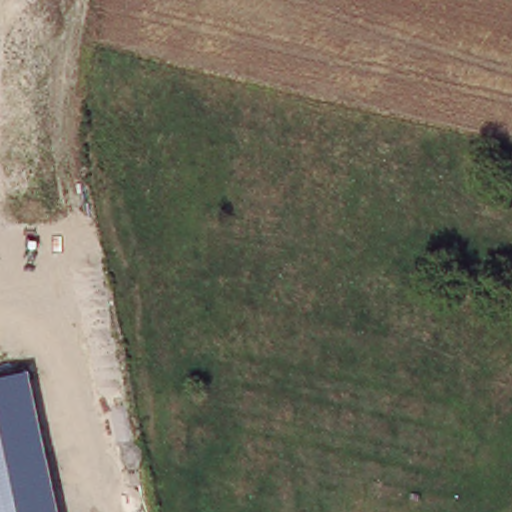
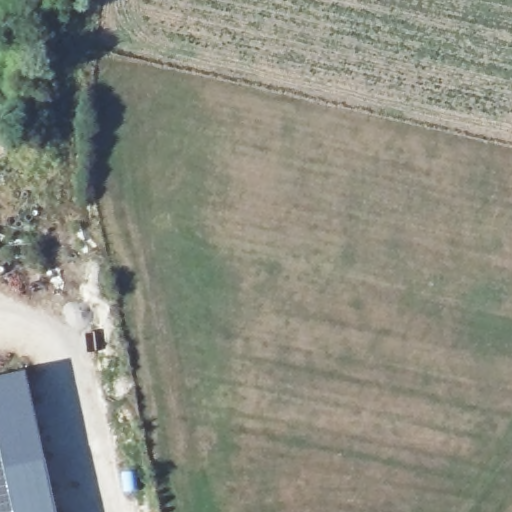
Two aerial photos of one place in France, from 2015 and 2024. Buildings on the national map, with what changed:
unchanged [(26,370),(55,512),(0,512),(0,376),(26,370)]

